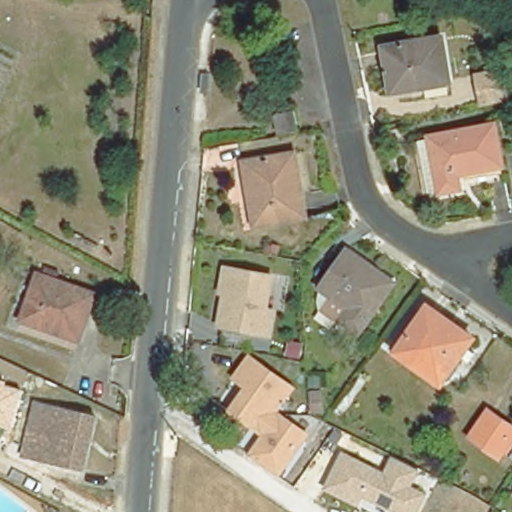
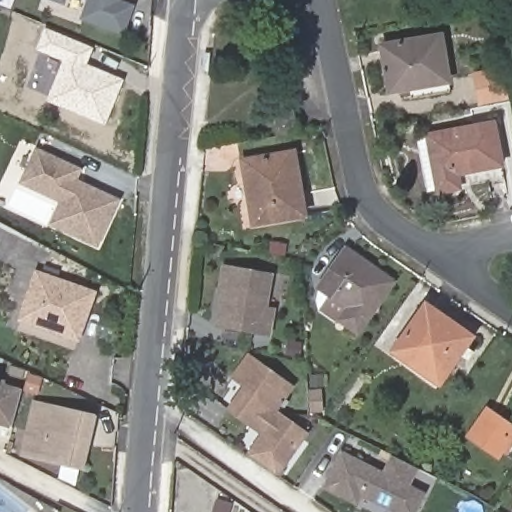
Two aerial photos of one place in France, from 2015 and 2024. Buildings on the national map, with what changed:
new [(48,0),(66,0),(64,6),(48,0)]
new [(86,0),(122,0),(121,1),(136,6),(124,36),(81,21),(87,1),(86,0)]
new [(63,62),(37,50),(46,29),(94,49),(88,65),(125,81),(106,126),(48,102),(63,62)]
unchanged [(448,85),(389,96),(380,48),(439,37),(448,85)]
unchanged [(501,67),(508,102),(499,105),(482,107),(474,72),(501,67)]
unchanged [(299,126),(281,129),(278,112),(297,107),(299,126)]
unchanged [(493,173),(490,161),(461,166),(464,181),(442,185),(441,182),(433,183),(422,133),(432,131),(432,130),(497,117),(504,157),(507,170),(493,173)]
new [(99,250),(49,225),(59,203),(19,184),(36,148),(84,170),(79,181),(121,200),(99,250)]
unchanged [(309,212),(258,221),(247,159),(299,150),(309,212)]
unchanged [(317,303),(319,290),(319,288),(345,252),(391,284),(355,335),(323,312),(319,312),(317,303)]
unchanged [(270,307),(278,308),(274,337),(218,330),(223,295),(218,293),(223,263),(274,273),(270,307)]
unchanged [(70,338),(20,321),(36,273),(94,292),(88,311),(78,341),(70,338)]
unchanged [(470,340),(439,385),(394,353),(425,309),(470,340)]
unchanged [(289,382),(271,408),(307,435),(274,482),(242,460),(262,433),(228,410),(242,391),(230,383),(250,355),(289,382)]
new [(0,426),(0,380),(8,382),(7,387),(21,390),(11,430),(0,426)]
unchanged [(25,441),(34,403),(93,416),(83,467),(23,454),(25,441)]
unchanged [(512,430),(512,436),(496,458),(468,439),(488,413),(512,430)]
demolished [(0,418),(12,421),(16,422),(13,438),(10,451),(0,449),(0,418)]
unchanged [(412,487),(428,494),(419,512),(384,512),(371,506),(368,512),(363,512),(323,491),(342,451),(385,472),(392,455),(421,468),(412,487)]

